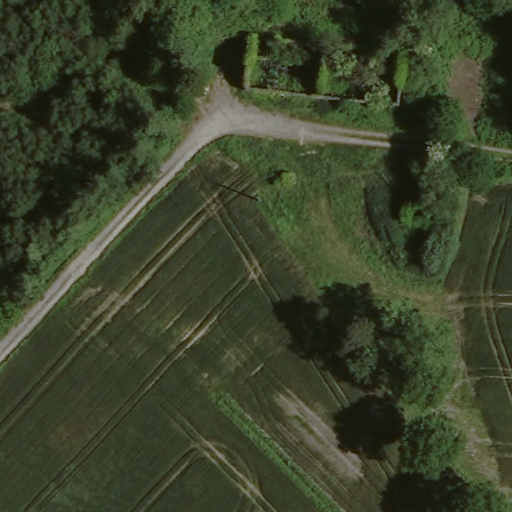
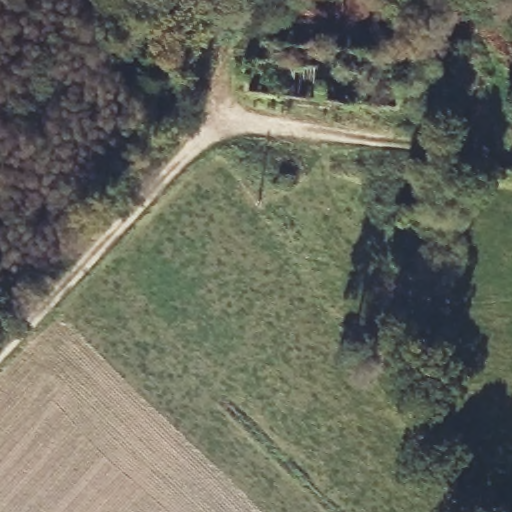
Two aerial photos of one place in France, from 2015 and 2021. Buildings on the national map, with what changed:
unchanged [(457,234),(410,229),(411,205),(459,211),(457,234)]

